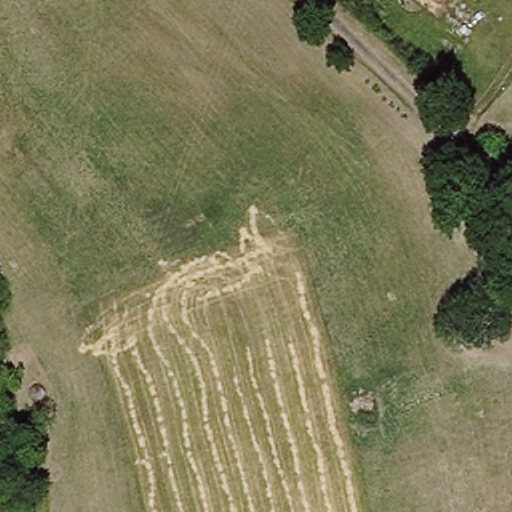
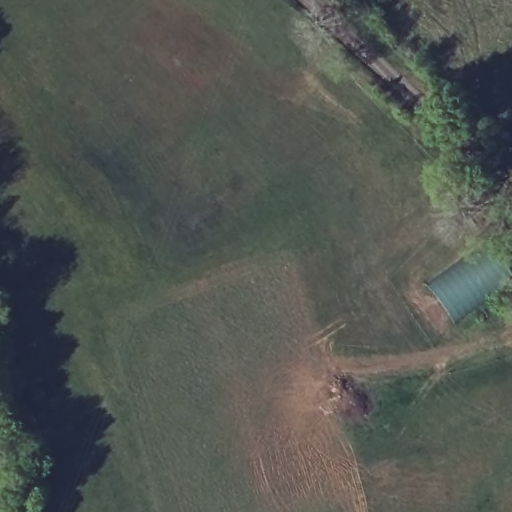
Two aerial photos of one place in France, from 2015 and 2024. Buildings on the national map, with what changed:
new [(497,262),(504,258),(512,273),(512,281),(454,322),(431,287),(447,278),(443,272),(480,252),(481,255),(492,255),(497,262)]

